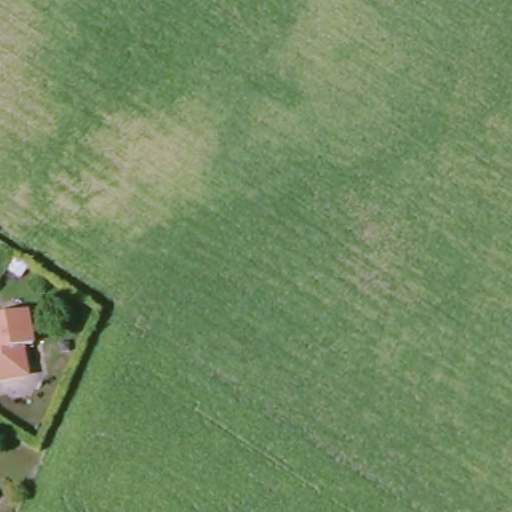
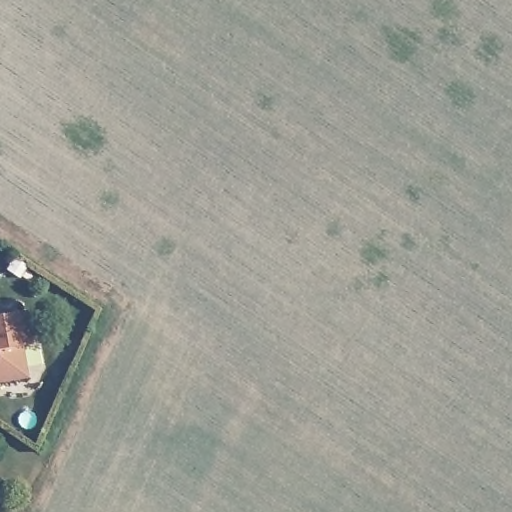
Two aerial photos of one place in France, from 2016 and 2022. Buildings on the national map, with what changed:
unchanged [(29,310),(35,344),(26,347),(29,370),(20,381),(0,384),(0,316),(29,310)]

